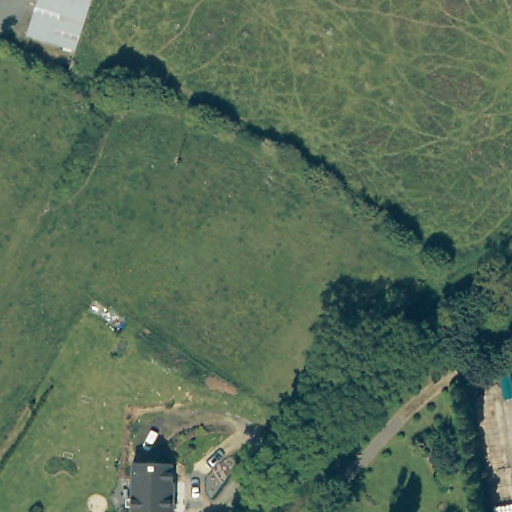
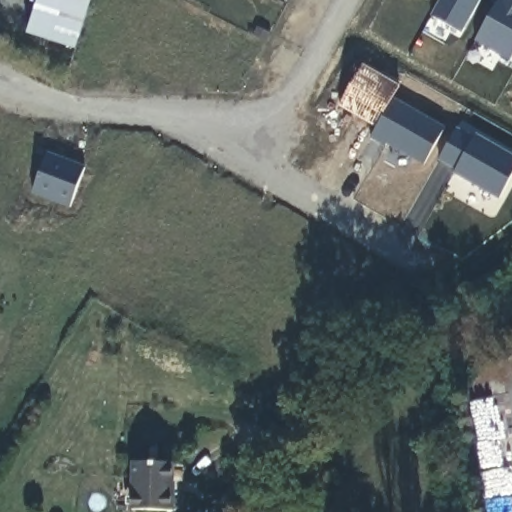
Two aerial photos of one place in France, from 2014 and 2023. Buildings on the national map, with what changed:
unchanged [(29,31),(39,0),(94,0),(78,48),(29,31)]
new [(432,15),(441,0),(481,0),(462,33),(432,15)]
new [(363,64),(400,85),(377,126),(340,104),(363,64)]
new [(424,164),(387,143),(385,145),(371,136),(393,98),(445,128),(424,164)]
new [(476,134),(512,155),(512,176),(499,199),(454,172),(456,168),(439,159),(457,128),(474,138),(476,134)]
new [(71,205),(33,190),(47,151),(86,166),(71,205)]
unchanged [(172,491),(175,491),(174,511),(131,509),(134,461),(173,463),(172,491)]

